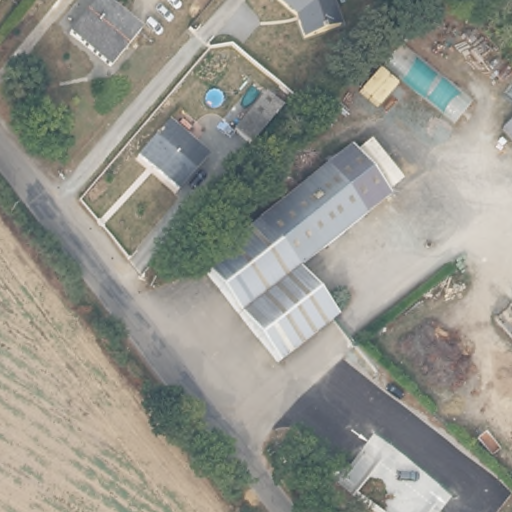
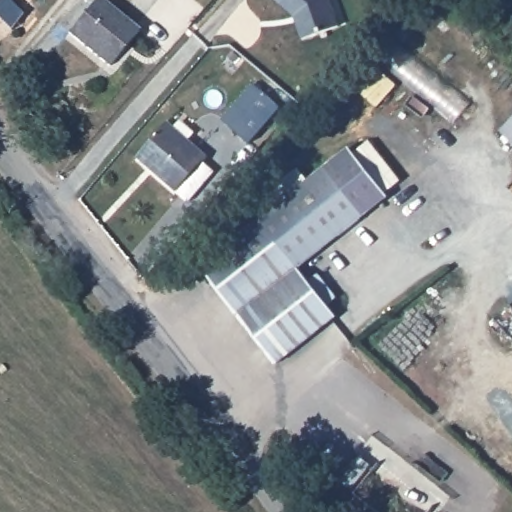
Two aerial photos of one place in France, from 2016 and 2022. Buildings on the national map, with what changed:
unchanged [(69,34),(97,0),(101,0),(140,31),(110,68),(69,34)]
unchanged [(329,0),(339,26),(304,39),(298,22),(295,16),(277,0),(329,0)]
unchanged [(366,59),(395,32),(476,99),(451,126),(366,59)]
unchanged [(249,144),(234,130),(265,94),(281,108),(249,144)]
unchanged [(502,131),(512,121),(512,143),(502,131)]
unchanged [(177,192),(137,156),(168,122),(207,156),(177,192)]
unchanged [(345,148),(384,197),(329,240),(292,190),(345,148)]
unchanged [(332,317),(271,364),(195,267),(292,190),(329,240),(293,268),(332,317)]

